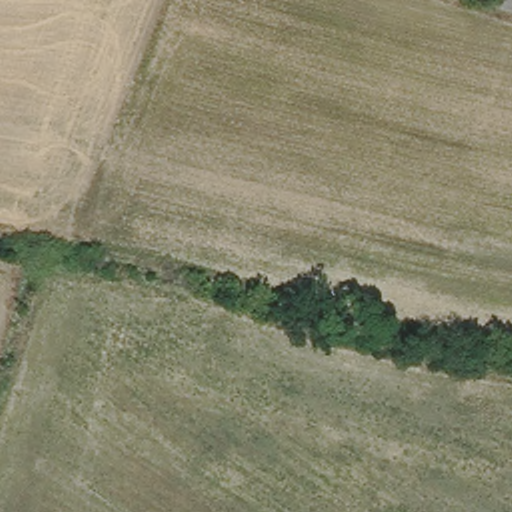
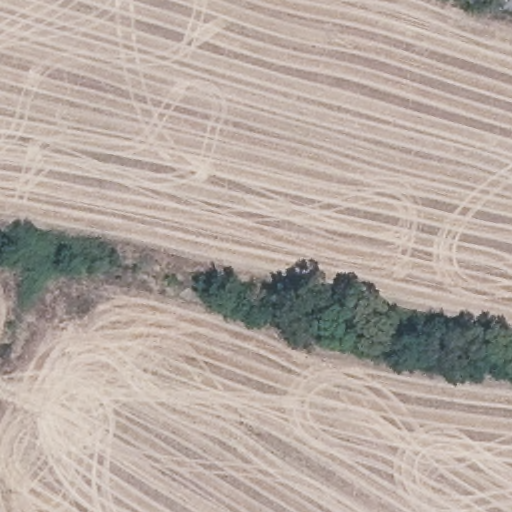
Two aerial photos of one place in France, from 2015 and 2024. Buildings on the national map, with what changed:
unchanged [(512,0),(512,12),(497,8),(501,0),(512,0)]

